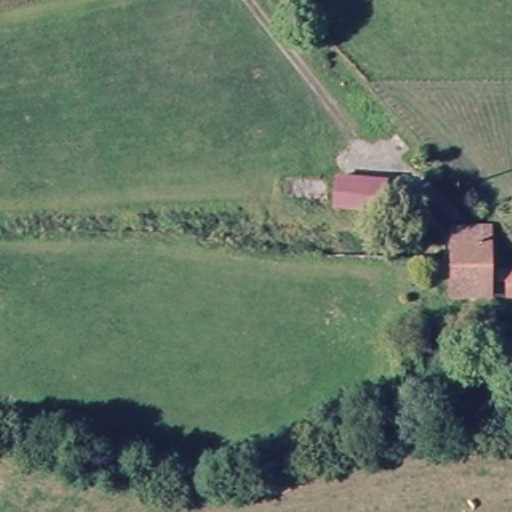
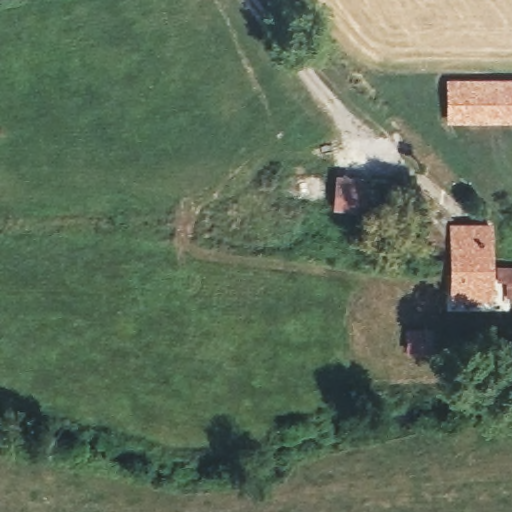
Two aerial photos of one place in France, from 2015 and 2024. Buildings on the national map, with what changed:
new [(512,77),(512,121),(494,122),(445,121),(444,77),(512,77)]
unchanged [(397,177),(395,208),(344,205),(346,186),(346,175),(397,177)]
unchanged [(494,299),(456,299),(455,231),(494,232),(494,248),(494,299)]
unchanged [(511,299),(510,286),(503,286),(502,276),(512,276),(512,299),(511,299)]
unchanged [(409,326),(434,327),(434,348),(409,348),(409,326)]

